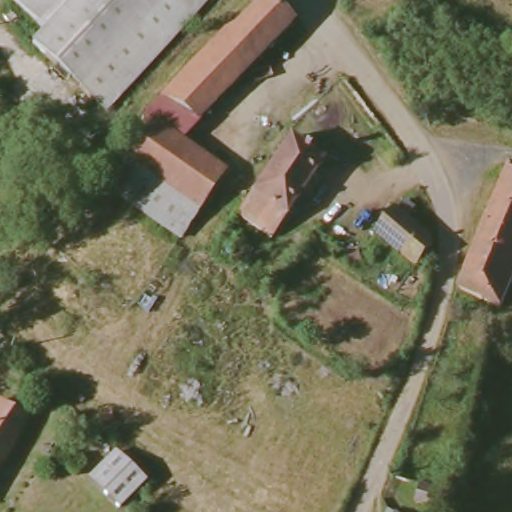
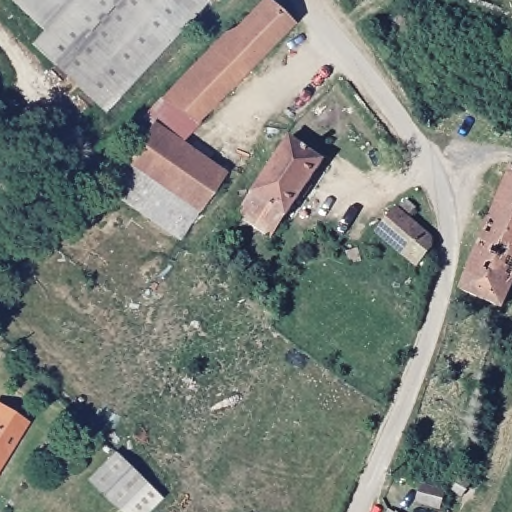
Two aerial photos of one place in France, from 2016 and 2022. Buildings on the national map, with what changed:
unchanged [(83,86),(35,43),(47,29),(15,0),(160,0),(83,86)]
unchanged [(106,107),(83,86),(160,0),(208,0),(106,107)]
unchanged [(294,21),(181,138),(225,168),(181,239),(103,186),(148,120),(141,113),(223,27),(232,26),(259,0),(271,0),(294,21)]
unchanged [(293,141),(326,164),(272,240),(238,218),(293,141)]
unchanged [(512,176),(512,295),(506,308),(463,291),(512,176)]
unchanged [(403,210),(440,242),(420,268),(383,234),(403,210)]
unchanged [(0,479),(0,412),(30,428),(0,479)]
unchanged [(105,469),(118,454),(148,481),(121,510),(105,496),(92,483),(105,469)]
unchanged [(468,491),(462,507),(447,502),(454,485),(468,491)]
unchanged [(411,512),(416,498),(440,505),(438,512),(411,512)]

